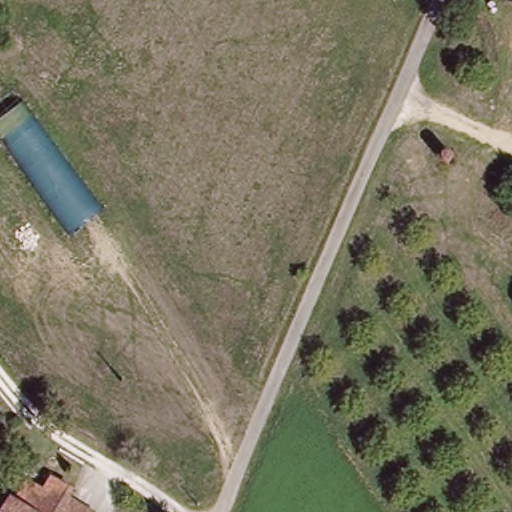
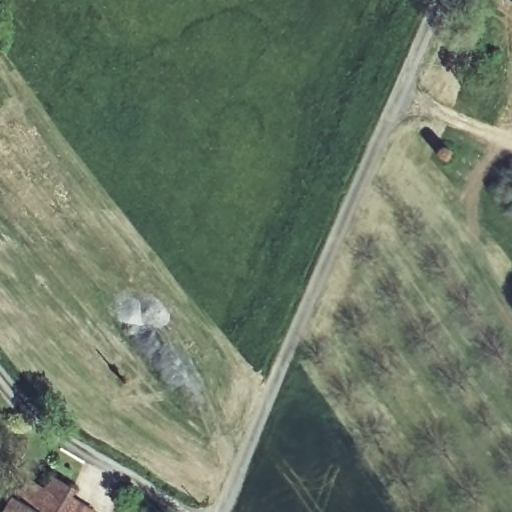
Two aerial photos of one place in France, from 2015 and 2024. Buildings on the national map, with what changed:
demolished [(101,210),(71,230),(0,132),(0,97),(16,86),(101,210)]
unchanged [(73,496),(67,510),(71,512),(7,512),(12,503),(19,506),(30,488),(46,495),(52,485),(73,496)]

